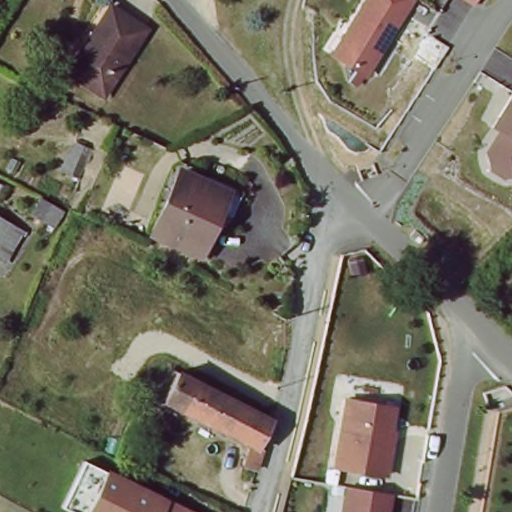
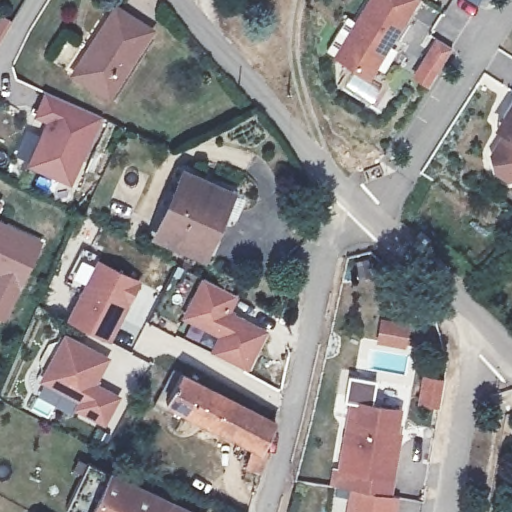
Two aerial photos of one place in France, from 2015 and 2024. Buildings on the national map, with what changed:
unchanged [(368,78),(334,55),(368,0),(416,0),(368,78)]
unchanged [(152,29),(110,95),(75,72),(91,47),(87,45),(114,3),(152,29)]
new [(105,119),(73,190),(29,170),(50,127),(37,120),(49,93),(105,119)]
unchanged [(497,175),(490,158),(506,139),(494,129),(512,99),(512,182),(511,182),(497,175)]
demolished [(84,137),(105,142),(92,169),(72,160),(84,137)]
unchanged [(235,192),(204,258),(158,237),(191,171),(235,192)]
demolished [(69,205),(57,222),(37,208),(48,191),(69,205)]
new [(2,199),(0,203),(0,197),(2,199)]
demolished [(24,228),(27,230),(7,260),(1,256),(0,256),(0,212),(24,228)]
new [(46,242),(9,321),(0,317),(0,219),(46,242)]
new [(96,255),(136,276),(105,335),(65,314),(96,255)]
new [(238,298),(232,311),(269,331),(249,375),(205,353),(213,335),(178,318),(200,278),(238,298)]
new [(62,329),(104,352),(89,378),(114,391),(100,416),(73,401),(77,394),(38,372),(62,329)]
new [(356,403),(330,397),(338,365),(363,370),(356,403)]
unchanged [(243,466),(252,448),(164,397),(180,370),(276,425),(262,452),(269,457),(265,475),(243,466)]
unchanged [(397,482),(342,472),(353,406),(405,415),(397,482)]
unchanged [(103,470),(162,499),(188,512),(81,512),(82,511),(103,470)]
unchanged [(348,512),(352,492),(402,500),(400,512),(348,512)]

